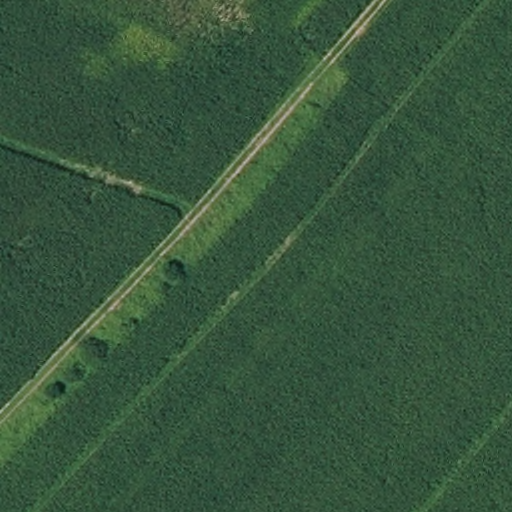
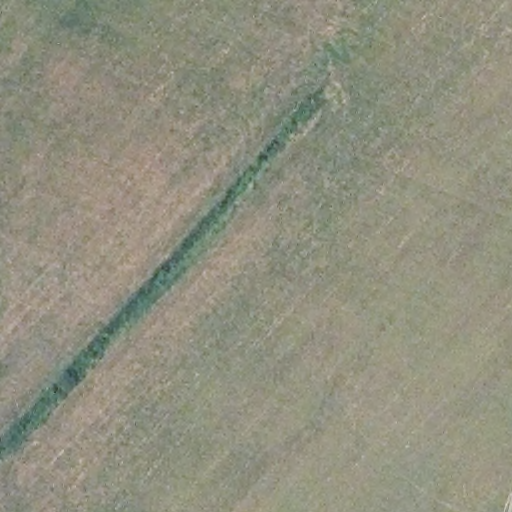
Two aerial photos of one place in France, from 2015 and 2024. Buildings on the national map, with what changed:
[]

